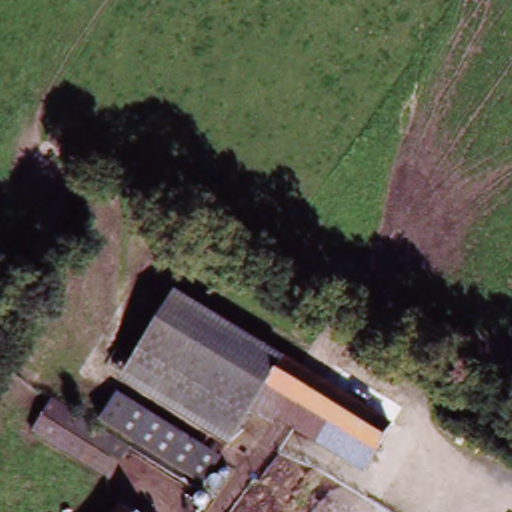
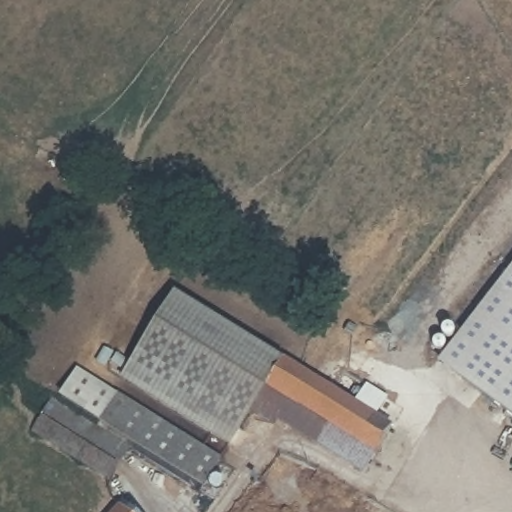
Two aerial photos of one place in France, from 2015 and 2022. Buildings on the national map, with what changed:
new [(512,269),(512,411),(443,365),(437,359),(512,269)]
unchanged [(262,391),(237,434),(127,375),(166,304),(256,353),(240,380),(262,391)]
unchanged [(389,422),(372,449),(262,391),(240,380),(256,353),(389,422)]
unchanged [(207,478),(96,419),(109,397),(220,455),(207,478)]
unchanged [(113,476),(27,432),(45,401),(131,446),(113,476)]
unchanged [(126,504),(135,512),(117,512),(126,504)]

